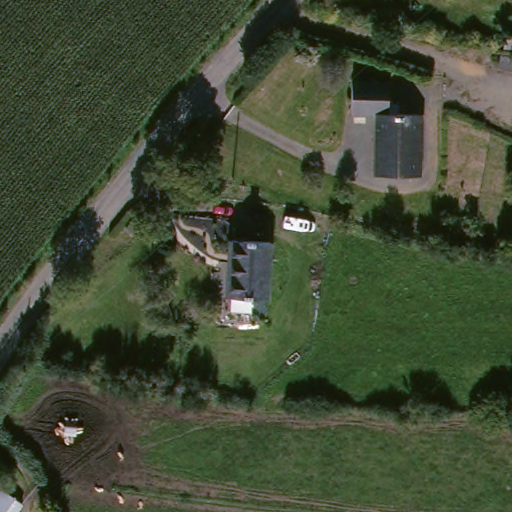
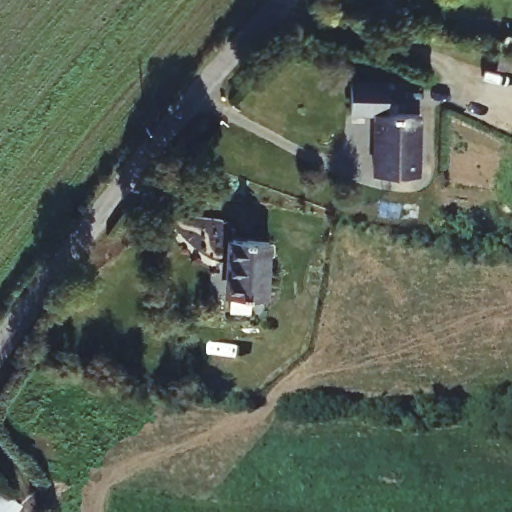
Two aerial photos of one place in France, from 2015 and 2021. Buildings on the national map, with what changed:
unchanged [(510,37),(512,37),(512,46),(509,46),(510,37)]
unchanged [(388,120),(363,118),(362,84),(402,85),(403,112),(431,113),(432,176),(388,174),(388,120)]
unchanged [(242,262),(235,260),(239,237),(283,243),(275,298),(237,294),(242,262)]
unchanged [(16,512),(0,512),(0,476),(28,495),(16,512)]

